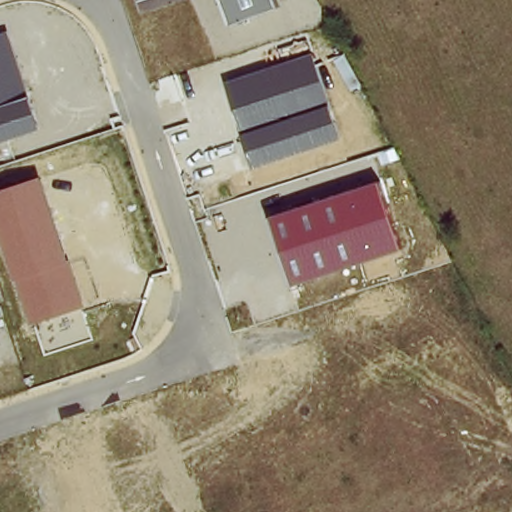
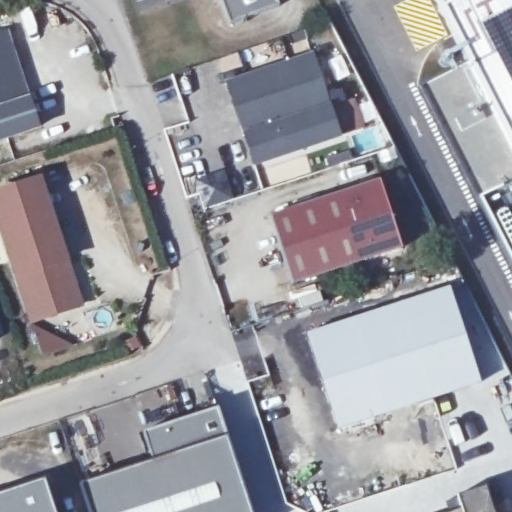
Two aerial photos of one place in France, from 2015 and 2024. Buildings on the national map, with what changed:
unchanged [(221,0),(277,0),(279,6),(231,26),(221,0)]
unchanged [(0,34),(9,31),(42,130),(0,144),(0,34)]
unchanged [(343,138),(253,168),(226,81),(313,52),(343,138)]
new [(235,170),(244,197),(204,210),(195,183),(235,170)]
unchanged [(0,231),(0,190),(43,176),(84,307),(32,325),(0,231)]
unchanged [(403,249),(293,285),(270,215),(380,180),(403,249)]
new [(450,287),(480,384),(338,429),(307,333),(450,287)]
new [(216,411),(225,440),(250,512),(91,512),(82,484),(153,461),(145,432),(216,411)]
new [(56,512),(0,512),(0,492),(45,478),(56,512)]
new [(463,507),(459,496),(487,489),(491,505),(507,500),(510,512),(448,512),(463,507)]

